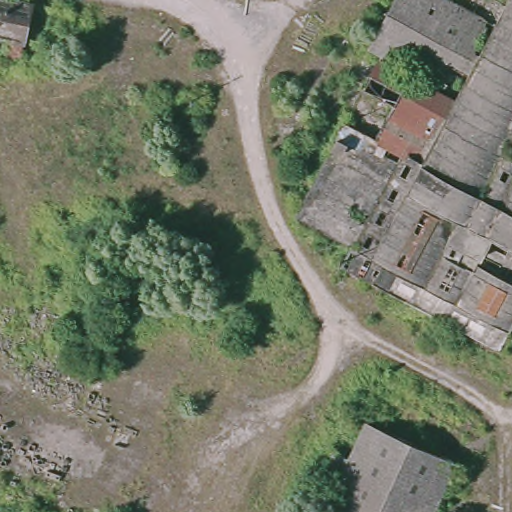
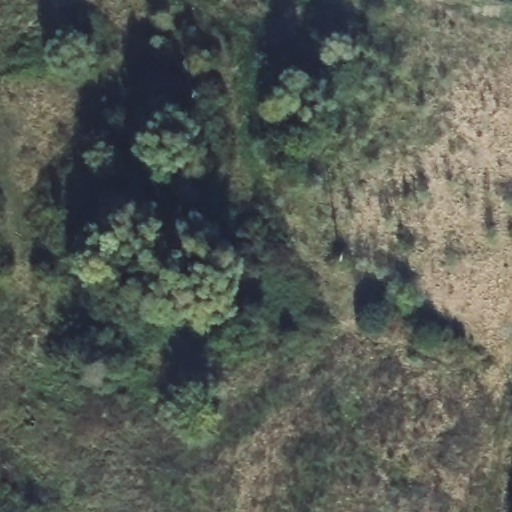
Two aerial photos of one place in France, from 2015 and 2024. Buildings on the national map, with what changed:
demolished [(20,51),(5,48),(6,36),(0,34),(0,0),(20,0),(30,2),(20,51)]
demolished [(335,266),(345,249),(290,219),(372,64),(447,104),(450,98),(361,51),(388,0),(483,0),(497,8),(501,0),(512,0),(512,314),(493,350),(335,266)]
demolished [(347,454),(363,419),(453,461),(429,512),(321,512),(335,481),(321,475),(335,447),(347,454)]

